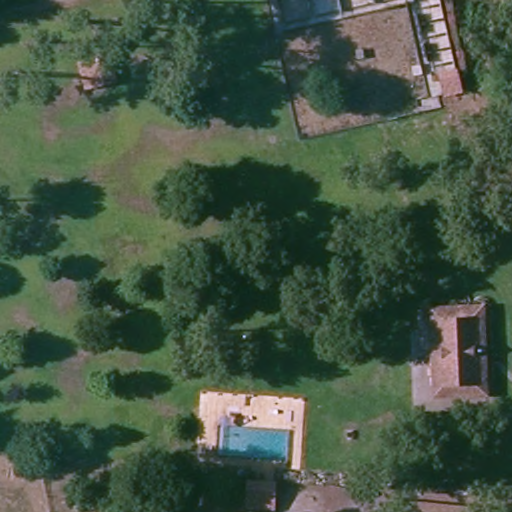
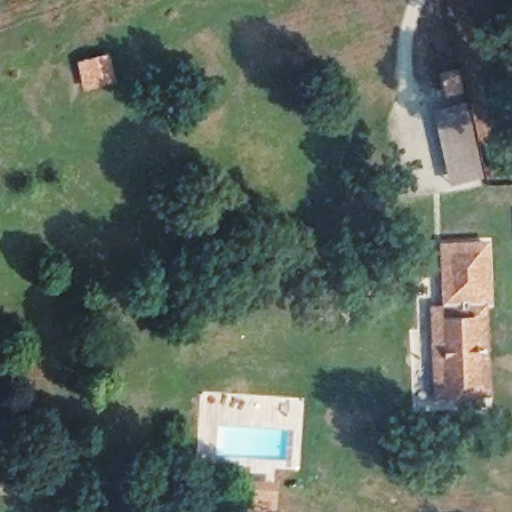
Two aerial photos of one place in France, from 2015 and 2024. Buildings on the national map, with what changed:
unchanged [(76,60),(108,53),(116,84),(84,91),(76,60)]
new [(483,178),(450,186),(432,110),(466,102),(483,178)]
new [(487,240),(490,311),(443,311),(439,242),(487,240)]
unchanged [(476,385),(447,385),(449,342),(435,342),(435,311),(490,311),(488,398),(475,398),(476,385)]
unchanged [(435,342),(449,342),(447,385),(476,385),(475,398),(435,399),(435,342)]

